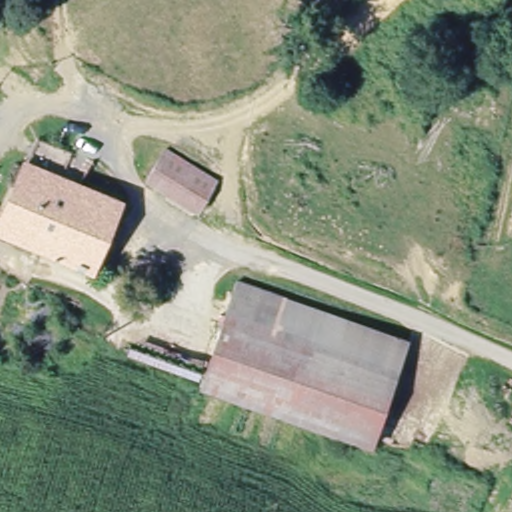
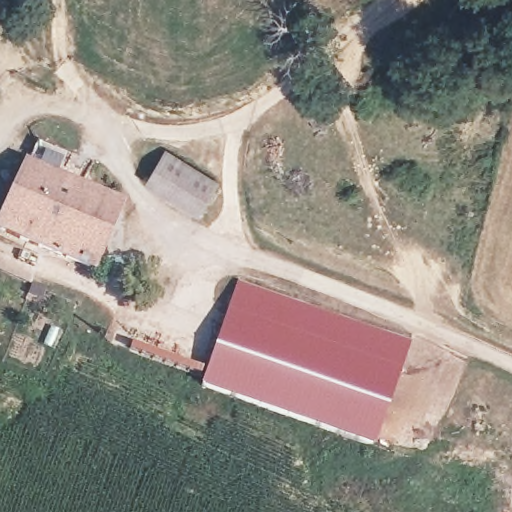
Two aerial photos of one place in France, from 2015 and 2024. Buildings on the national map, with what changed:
unchanged [(172,151),(221,183),(206,209),(202,213),(191,207),(151,181),(172,151)]
unchanged [(29,161),(124,209),(91,276),(0,232),(0,227),(1,224),(29,161)]
unchanged [(290,303),(281,325),(403,376),(370,451),(204,382),(225,330),(245,284),(290,303)]
unchanged [(411,357),(403,376),(281,325),(290,303),(411,357)]

